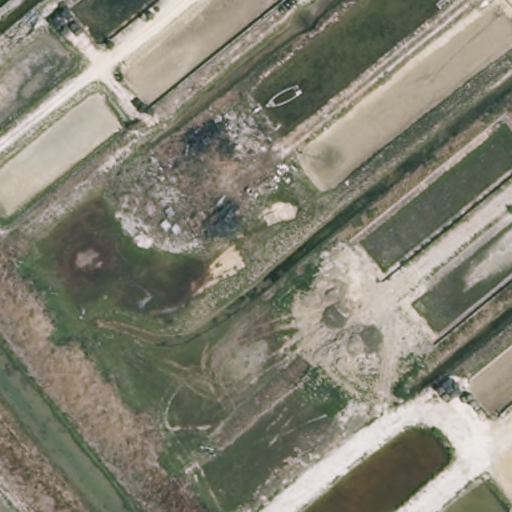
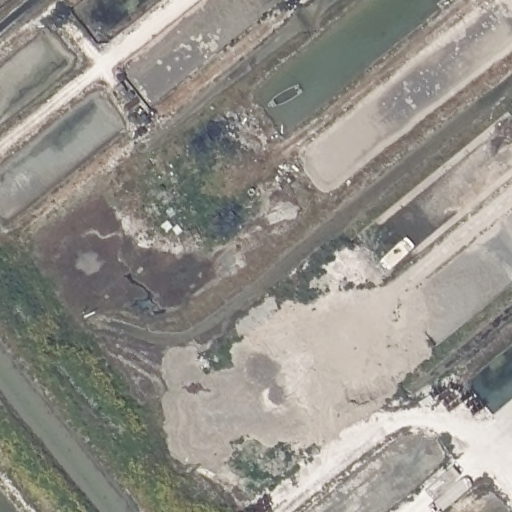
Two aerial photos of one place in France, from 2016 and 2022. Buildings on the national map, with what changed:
[]

